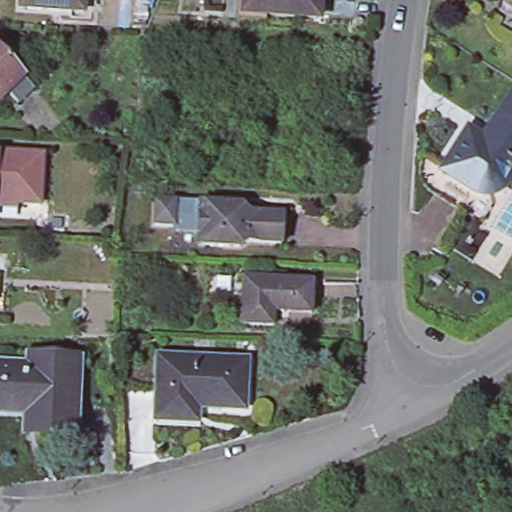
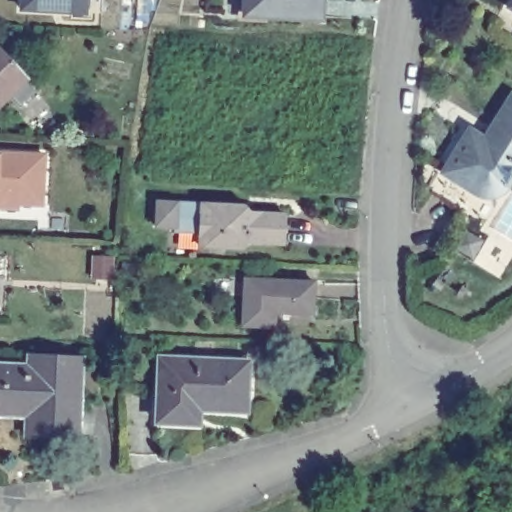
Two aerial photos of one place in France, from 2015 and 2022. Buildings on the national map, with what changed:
unchanged [(20,9),(20,0),(84,0),(84,11),(20,9)]
unchanged [(243,14),(244,0),(319,0),(318,18),(243,14)]
unchanged [(34,88),(18,100),(8,91),(0,99),(0,56),(21,79),(25,79),(34,88)]
unchanged [(449,166),(474,129),(489,138),(512,105),(512,173),(503,185),(494,188),(482,187),(476,183),(462,204),(436,186),(449,166)]
unchanged [(1,161),(48,164),(45,213),(2,210),(0,217),(0,163),(1,161)]
unchanged [(236,209),(238,212),(241,215),(243,217),(248,217),(248,214),(286,215),(285,246),(249,245),(246,249),(243,251),(228,250),(225,249),(223,247),(219,250),(201,250),(201,207),(236,209)]
unchanged [(316,286),(314,317),(276,314),(275,331),(244,329),(247,282),(316,286)]
unchanged [(248,360),(246,409),(187,408),(186,423),(156,421),(158,357),(248,360)]
unchanged [(40,363),(73,364),(72,439),(38,439),(38,419),(0,417),(0,369),(39,372),(40,363)]

